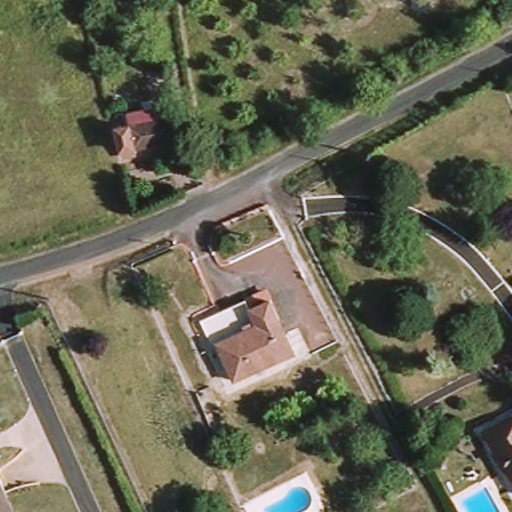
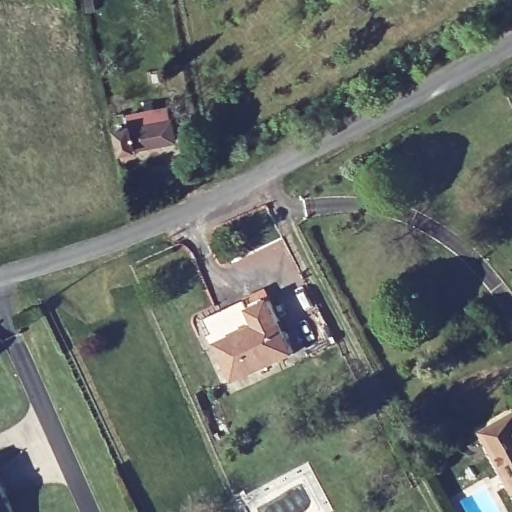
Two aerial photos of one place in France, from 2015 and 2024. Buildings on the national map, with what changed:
unchanged [(139,146),(140,152),(125,155),(121,127),(136,125),(134,115),(171,109),(172,119),(176,141),(139,146)]
unchanged [(241,308),(268,293),(298,356),(272,370),(241,308)]
unchanged [(241,386),(223,352),(217,348),(206,327),(241,308),(272,370),(241,386)]
unchanged [(512,480),(486,434),(512,418),(512,480)]
unchanged [(19,512),(0,512),(0,471),(19,512)]
unchanged [(313,482),(326,509),(320,512),(272,512),(270,506),(313,482)]

